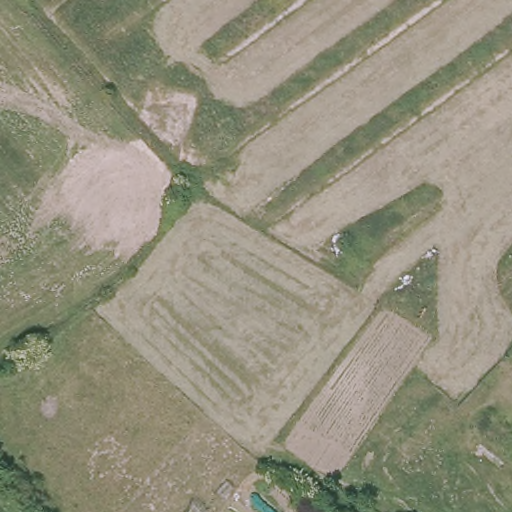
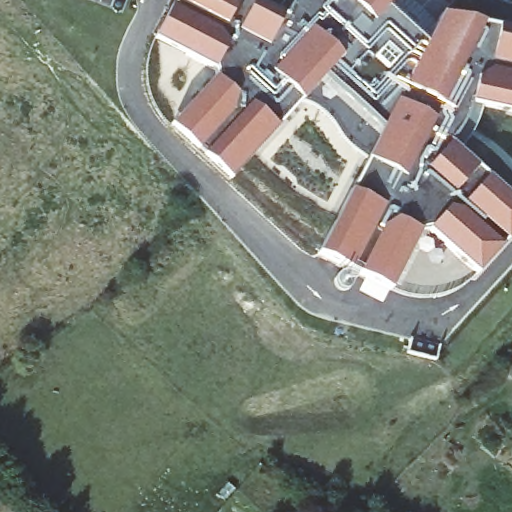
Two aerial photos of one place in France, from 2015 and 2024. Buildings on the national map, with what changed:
new [(362,152),(348,141),(332,117),(326,112),(319,107),(304,100),(302,97),(233,178),(173,125),(219,76),(217,67),(157,37),(177,0),(257,0),(279,11),(299,20),(307,7),(314,0),(394,0),(391,4),(430,39),(444,11),(512,28),(512,109),(461,99),(455,117),(449,128),(442,136),(512,197),(512,235),(477,273),(429,229),(422,230),(415,227),(392,288),(320,252),(369,157),(362,152)]
new [(307,7),(299,20),(279,11),(284,2),(285,0),(314,0),(307,7)]
new [(442,136),(449,128),(455,117),(461,99),(482,104),(478,119),(472,131),(469,137),(459,150),(442,136)]
new [(422,230),(429,229),(477,272),(467,282),(457,288),(445,293),(434,296),(417,296),(409,295),(392,288),(415,227),(422,230)]
new [(410,349),(414,335),(442,343),(438,357),(410,349)]

